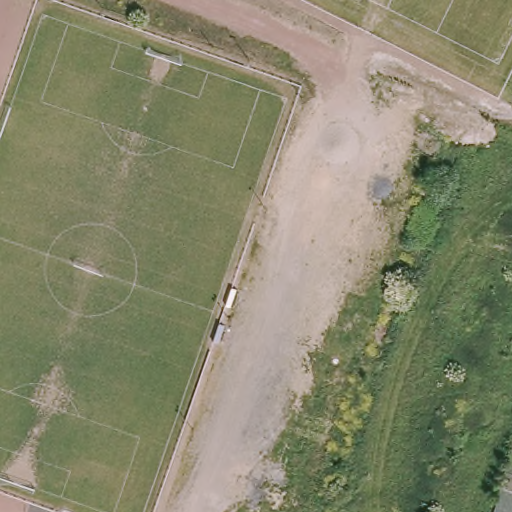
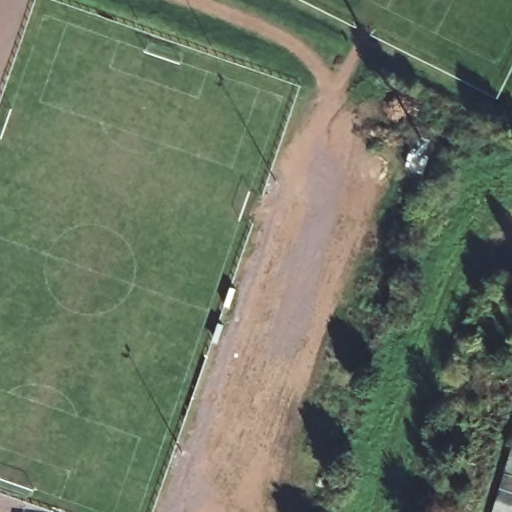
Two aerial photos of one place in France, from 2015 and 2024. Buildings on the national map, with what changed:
unchanged [(494,511),(498,497),(503,482),(506,469),(512,452),(512,450),(512,512),(493,512),(494,511)]

